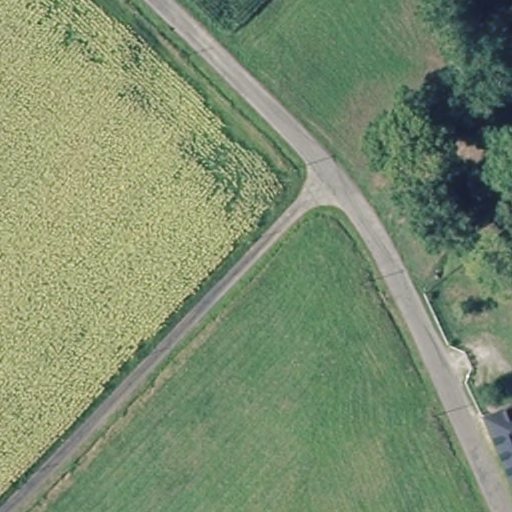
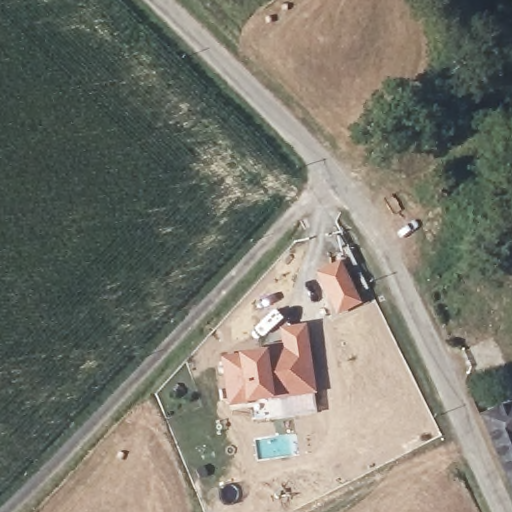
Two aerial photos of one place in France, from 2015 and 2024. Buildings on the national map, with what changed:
new [(339,261),(357,299),(337,308),(318,270),(339,261)]
new [(284,327),(304,324),(309,354),(313,387),(229,399),(224,355),(287,346),(284,327)]
unchanged [(512,475),(491,422),(512,414),(512,475)]

